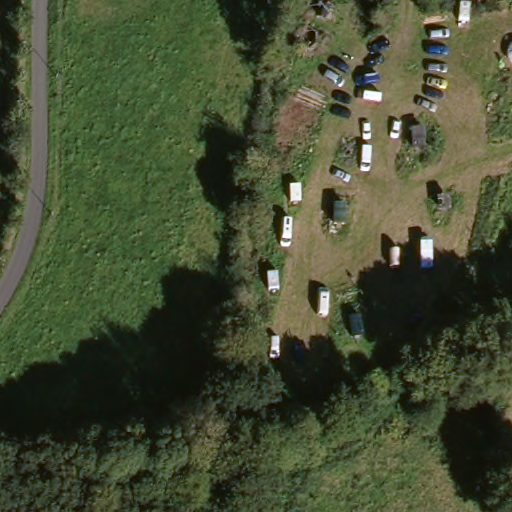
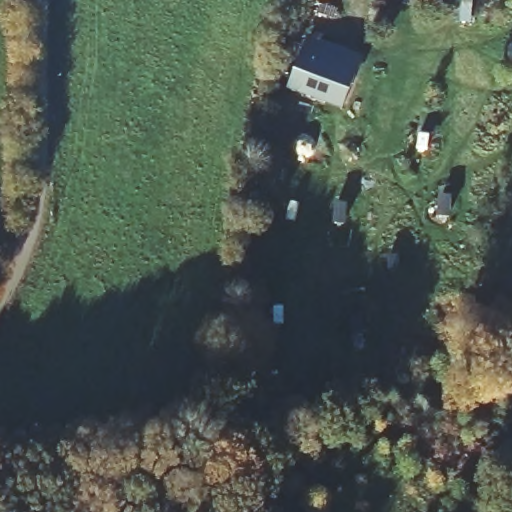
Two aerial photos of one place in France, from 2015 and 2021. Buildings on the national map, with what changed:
new [(286,90),(308,34),(366,56),(343,114),(286,90)]

